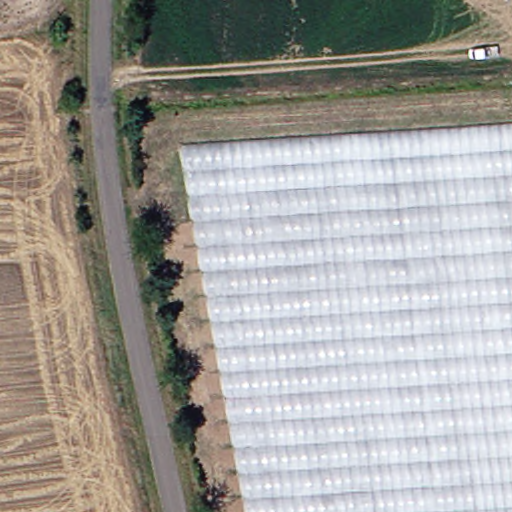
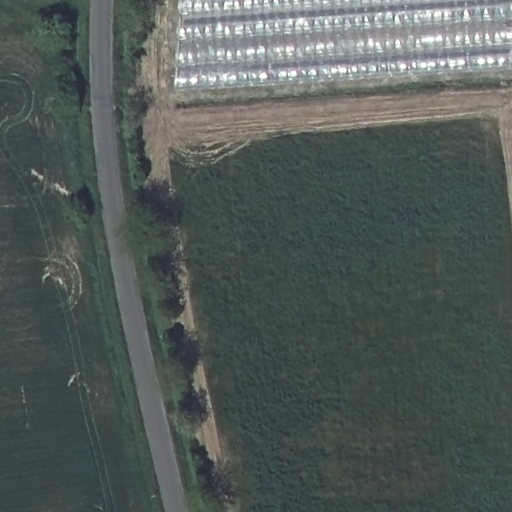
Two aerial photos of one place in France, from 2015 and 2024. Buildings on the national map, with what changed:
new [(512,0),(512,71),(177,89),(183,0),(512,0)]
demolished [(512,512),(247,512),(180,144),(512,123),(512,512)]

